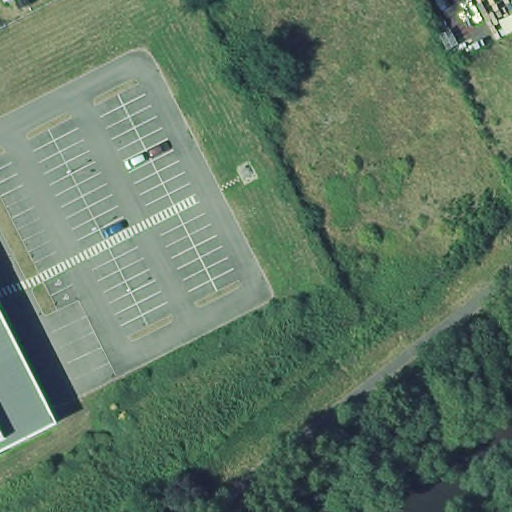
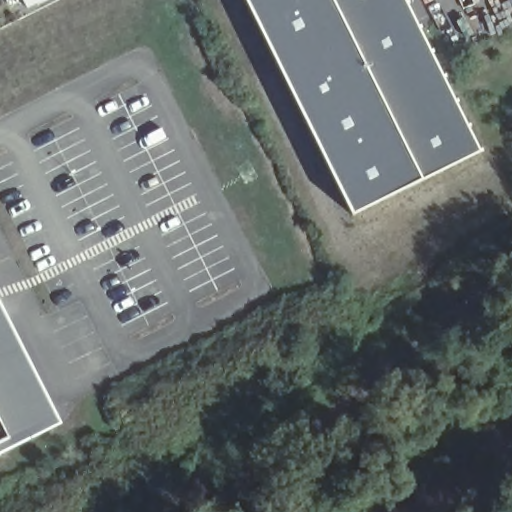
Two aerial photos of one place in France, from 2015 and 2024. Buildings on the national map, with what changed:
unchanged [(11,1),(11,0),(14,0),(11,1)]
new [(476,151),(346,215),(241,0),(402,0),(476,151)]
unchanged [(0,457),(0,297),(64,425),(0,457)]

